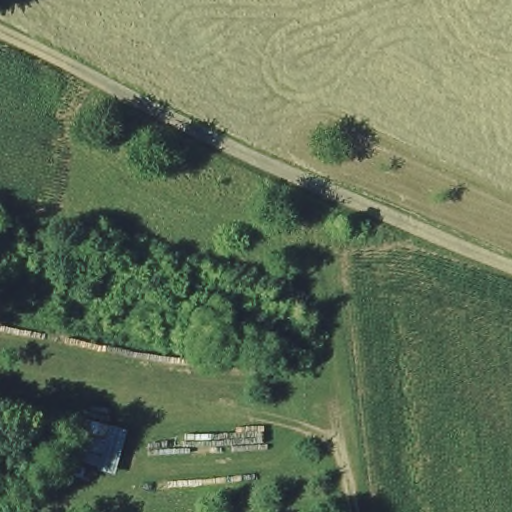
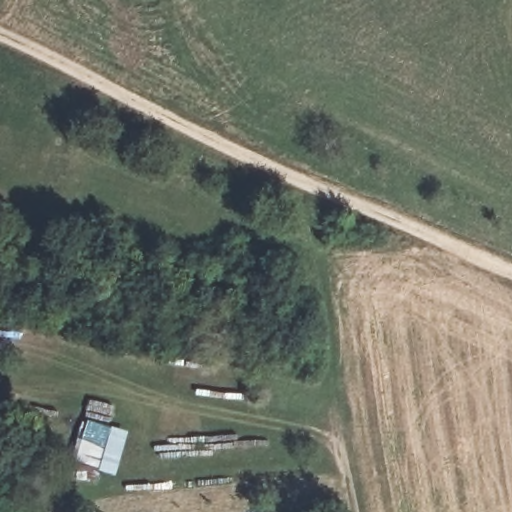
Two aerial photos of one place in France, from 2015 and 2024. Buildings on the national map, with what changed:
unchanged [(132,427),(120,475),(79,460),(94,414),(132,427)]

